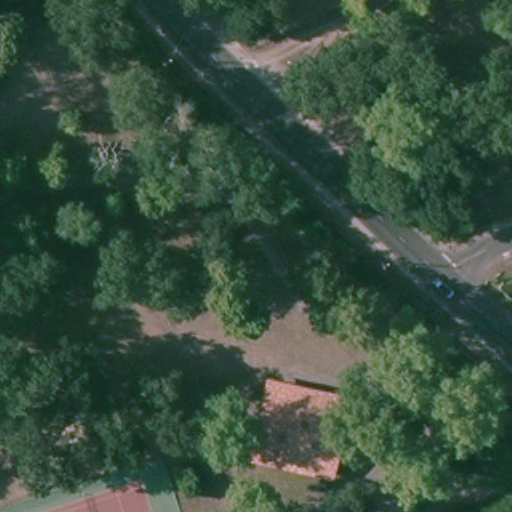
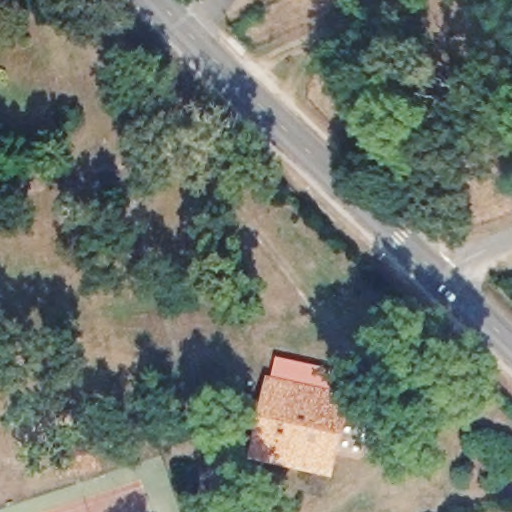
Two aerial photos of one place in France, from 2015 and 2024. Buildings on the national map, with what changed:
new [(272,378),(277,357),(334,370),(331,391),(349,395),(334,477),(250,457),(267,377),(272,378)]
demolished [(266,462),(280,387),(338,400),(323,474),(266,462)]
unchanged [(108,459),(71,469),(64,441),(101,433),(108,459)]

